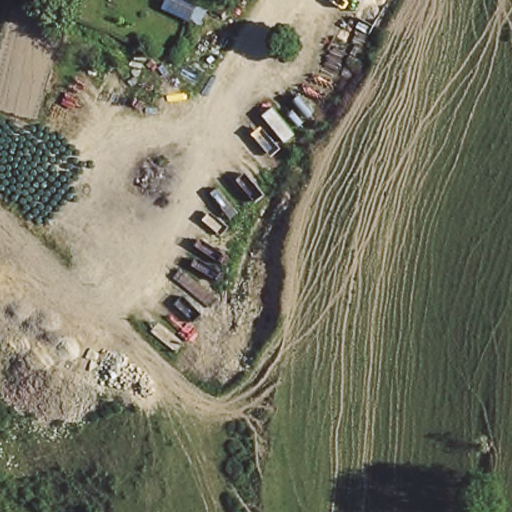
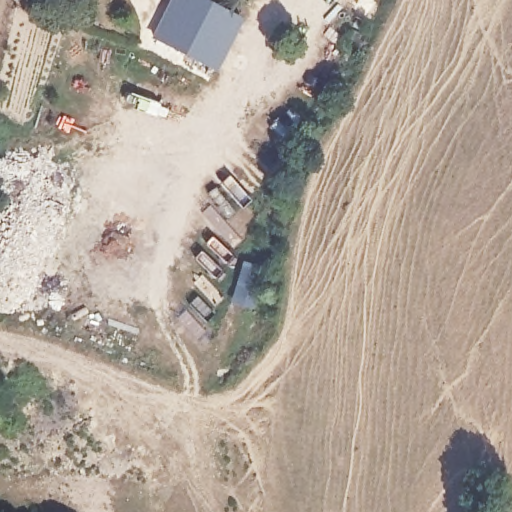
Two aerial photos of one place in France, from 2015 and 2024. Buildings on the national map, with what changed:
new [(148,36),(167,0),(207,0),(240,18),(213,70),(148,36)]

